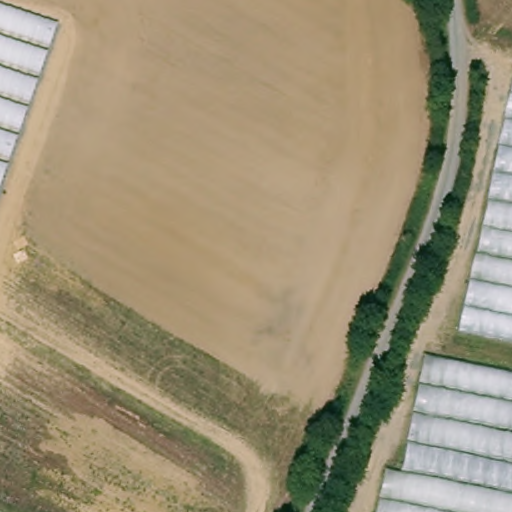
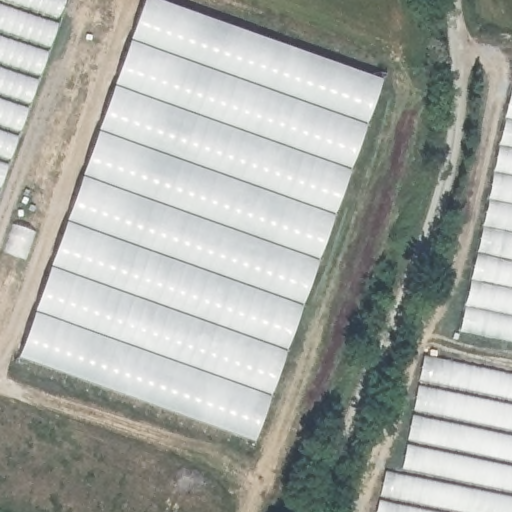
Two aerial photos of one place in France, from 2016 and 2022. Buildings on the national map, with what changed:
new [(19,356),(145,0),(160,0),(382,80),(256,441),(19,356)]
unchanged [(57,26),(0,186),(0,7),(57,26)]
unchanged [(512,90),(512,349),(456,337),(512,90)]
unchanged [(512,512),(383,512),(391,471),(407,474),(426,355),(512,372),(512,512)]

